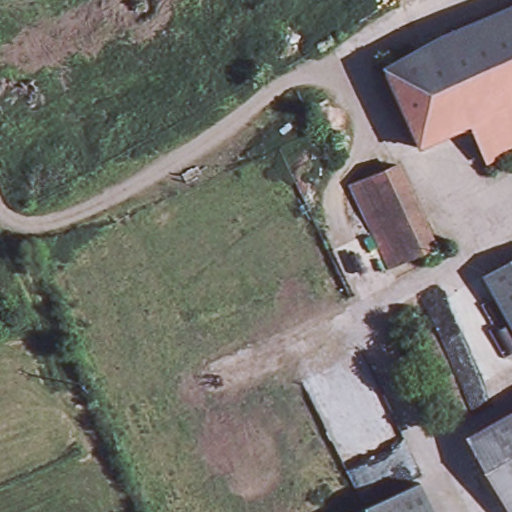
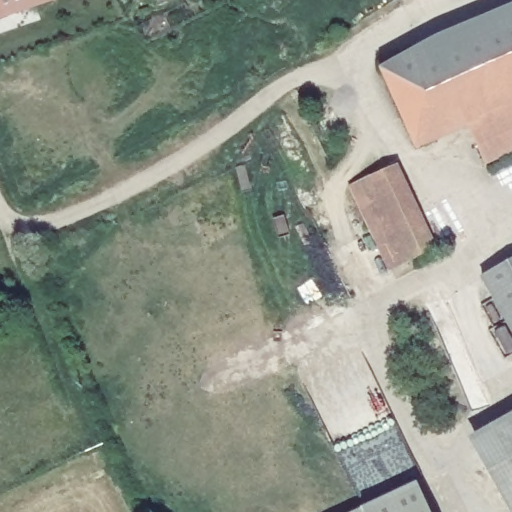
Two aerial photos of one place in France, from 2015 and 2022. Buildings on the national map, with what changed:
new [(0,20),(0,0),(58,0),(0,20)]
unchanged [(475,142),(467,125),(416,147),(383,70),(512,11),(512,148),(483,162),(475,142)]
unchanged [(399,162),(440,249),(392,273),(350,185),(399,162)]
unchanged [(512,334),(480,277),(512,260),(512,334)]
unchanged [(512,415),(512,512),(511,512),(470,438),(512,415)]
unchanged [(431,512),(355,512),(418,484),(431,512)]

